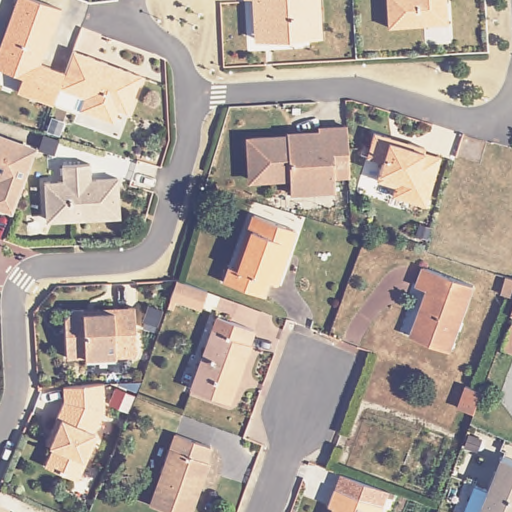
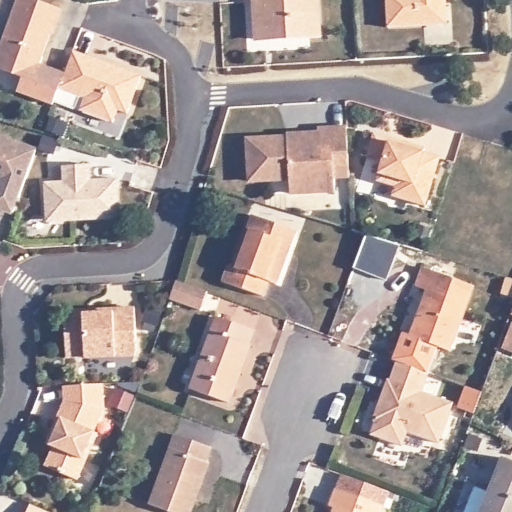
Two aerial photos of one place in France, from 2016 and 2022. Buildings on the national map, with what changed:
unchanged [(64,73),(58,88),(58,91),(53,104),(26,94),(32,80),(0,68),(0,45),(16,0),(38,0),(61,9),(52,33),(50,32),(42,55),(39,63),(64,73)]
unchanged [(258,0),(321,0),(324,36),(282,39),(261,40),(260,29),(258,0)]
unchanged [(447,24),(388,28),(386,0),(445,0),(447,24)]
unchanged [(119,68),(140,76),(127,113),(117,110),(112,122),(79,110),(84,98),(58,88),(64,73),(72,51),(107,64),(119,68)]
unchanged [(334,178),(335,191),(290,194),(289,180),(253,182),(249,178),(247,143),(251,139),(288,137),(288,135),(318,133),(318,129),(346,128),(349,172),(349,177),(334,178)]
unchanged [(397,196),(400,187),(381,181),(387,162),(371,157),(378,133),(395,139),(413,144),(429,149),(428,152),(444,157),(430,206),(397,196)]
unchanged [(35,152),(13,214),(0,210),(0,139),(35,152)]
unchanged [(125,218),(88,220),(88,218),(51,220),(49,183),(68,182),(67,166),(95,164),(96,180),(123,179),(125,218)]
unchanged [(271,283),(265,298),(226,283),(232,267),(240,270),(258,219),(297,232),(279,286),(271,283)]
unchanged [(411,337),(425,292),(414,288),(422,268),(472,285),(450,350),(411,337)]
unchanged [(171,297),(177,281),(178,277),(208,288),(201,307),(171,297)]
unchanged [(511,280),(512,280),(512,300),(505,298),(511,280)]
unchanged [(113,309),(135,308),(137,348),(135,356),(85,359),(86,360),(67,361),(65,323),(72,311),(84,311),(113,309)]
unchanged [(191,390),(216,318),(252,331),(247,344),(250,345),(229,403),(191,390)]
unchanged [(512,337),(512,351),(508,350),(512,337)]
new [(377,413),(374,412),(388,375),(390,376),(397,357),(428,369),(422,387),(453,398),(438,439),(407,427),(402,441),(371,430),(377,413)]
unchanged [(459,405),(467,382),(483,388),(475,411),(459,405)]
unchanged [(50,431),(63,401),(62,387),(91,385),(102,384),(104,409),(93,432),(97,434),(77,480),(44,466),(52,447),(48,445),(45,444),(50,431)]
unchanged [(153,500),(179,430),(214,443),(208,457),(211,458),(191,512),(185,512),(177,509),(153,500)]
unchanged [(492,494),(504,460),(512,463),(512,512),(470,512),(478,489),(492,494)]
unchanged [(326,507),(338,475),(385,492),(377,512),(329,512),(331,509),(326,507)]

